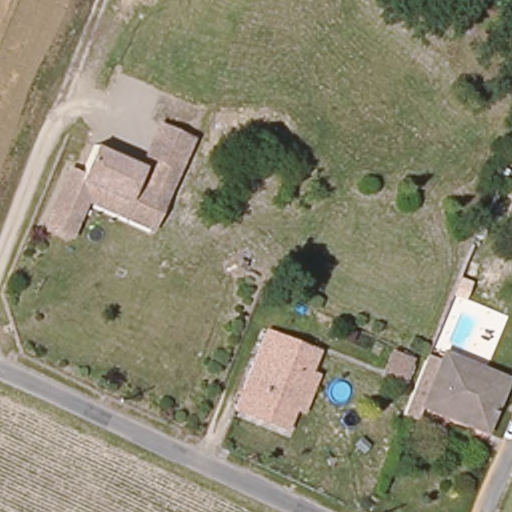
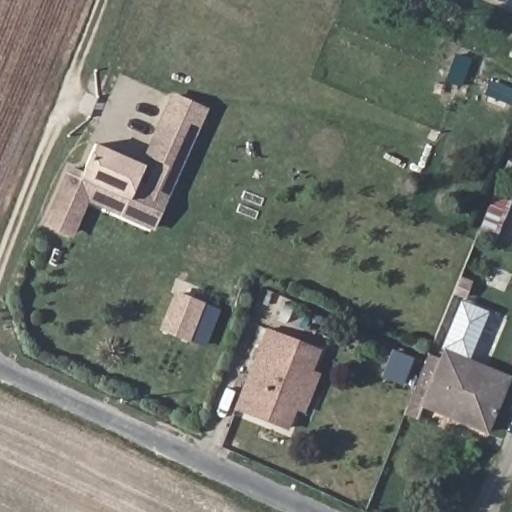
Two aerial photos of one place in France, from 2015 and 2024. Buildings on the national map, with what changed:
new [(159,122),(171,93),(210,112),(197,141),(189,137),(159,122)]
unchanged [(157,157),(146,152),(159,122),(189,137),(177,165),(157,157)]
unchanged [(64,230),(44,223),(67,167),(79,173),(92,142),(140,164),(132,182),(144,187),(157,157),(177,165),(150,227),(119,214),(80,197),(64,230)]
new [(189,343),(158,330),(173,291),(205,303),(189,343)]
unchanged [(237,408),(272,329),(322,350),(288,430),(237,408)]
unchanged [(448,355),(512,381),(512,388),(492,434),(477,428),(451,418),(427,409),(448,355)]

